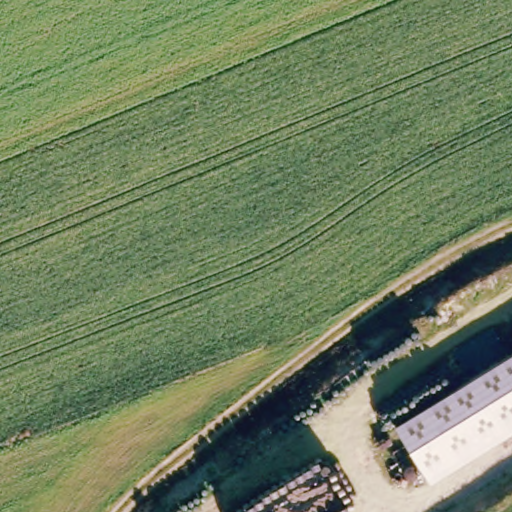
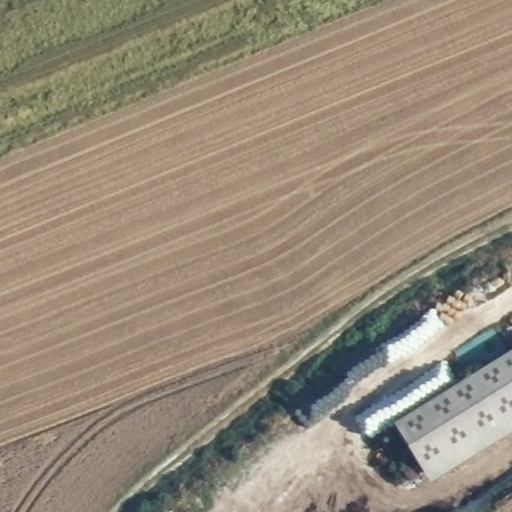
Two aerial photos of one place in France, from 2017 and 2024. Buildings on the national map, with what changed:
unchanged [(433,484),(396,429),(512,351),(512,431),(433,484)]

